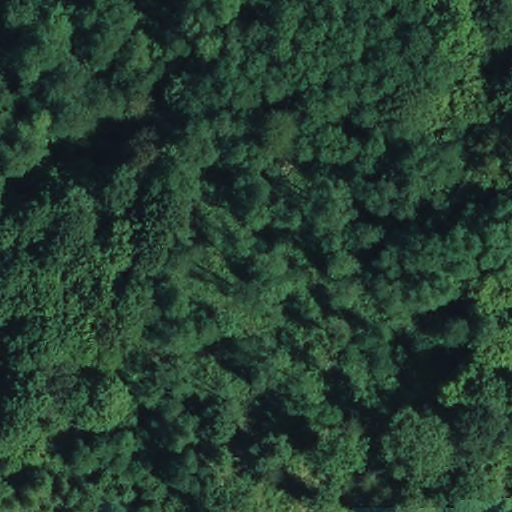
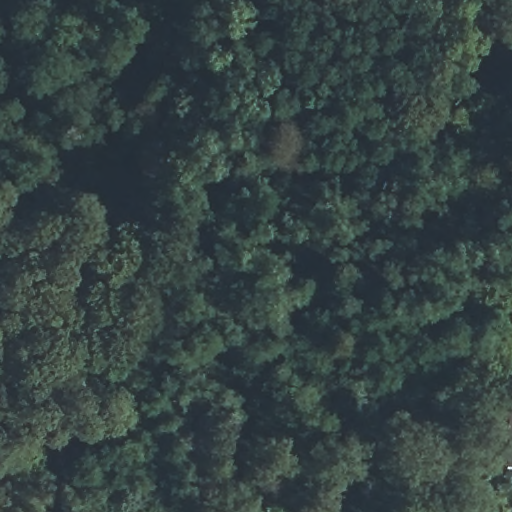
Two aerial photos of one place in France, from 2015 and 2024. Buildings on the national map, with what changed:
unchanged [(507,466),(512,386),(512,387),(512,467),(507,466)]

